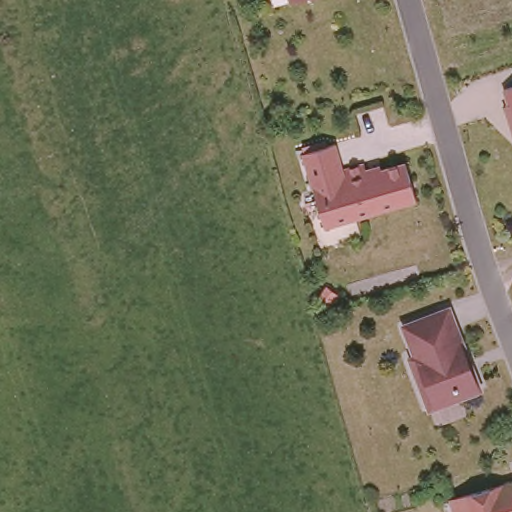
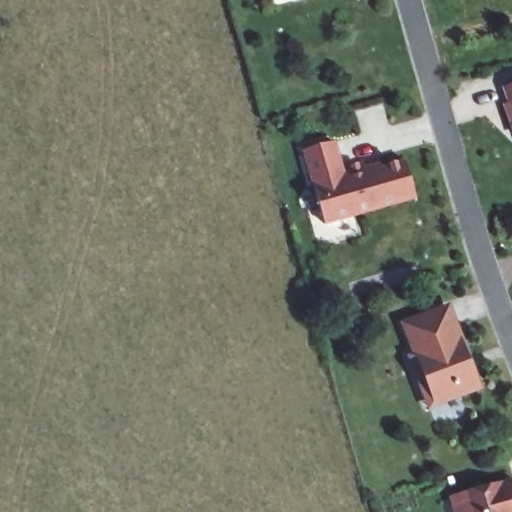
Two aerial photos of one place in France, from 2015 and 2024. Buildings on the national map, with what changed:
unchanged [(512,78),(512,89),(509,79),(512,78)]
unchanged [(512,94),(512,104),(509,95),(512,94)]
unchanged [(341,139),(349,166),(371,160),(374,170),(412,159),(422,196),(331,221),(310,148),(341,139)]
unchanged [(454,326),(461,324),(480,388),(443,399),(433,363),(426,365),(421,348),(428,346),(419,317),(449,308),(454,326)]
unchanged [(512,486),(512,512),(464,512),(461,499),(512,486)]

